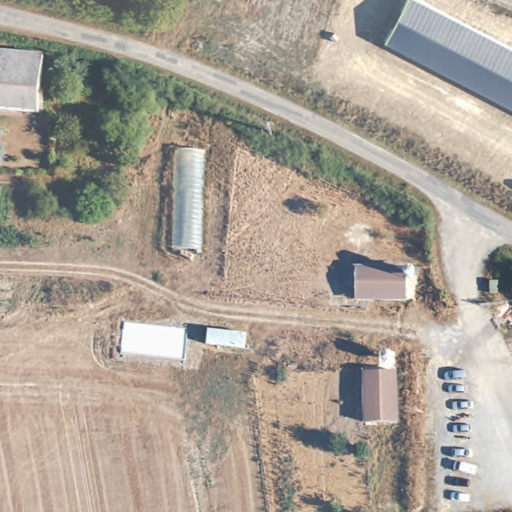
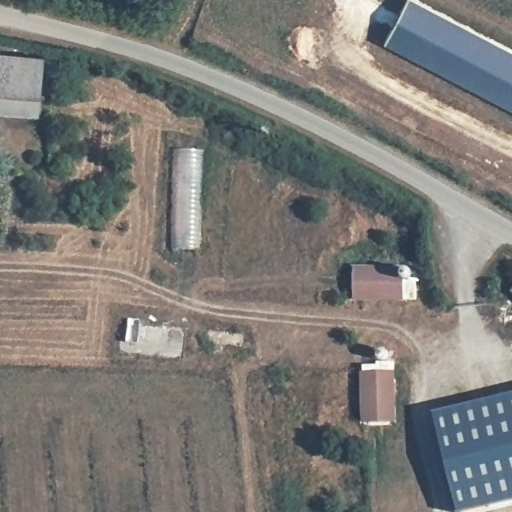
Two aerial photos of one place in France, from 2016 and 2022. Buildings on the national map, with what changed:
unchanged [(407,0),(413,0),(512,51),(512,110),(382,45),(407,0)]
unchanged [(38,61),(37,87),(33,115),(0,111),(0,57),(38,61)]
unchanged [(171,250),(177,150),(204,150),(201,250),(171,250)]
unchanged [(415,266),(417,281),(408,281),(407,304),(353,306),(349,271),(415,266)]
unchanged [(397,373),(399,422),(365,422),(364,375),(397,373)]
new [(458,512),(435,414),(512,395),(512,503),(475,512),(458,512)]

